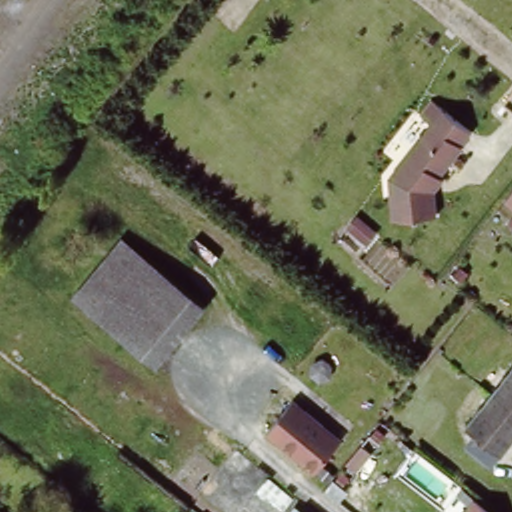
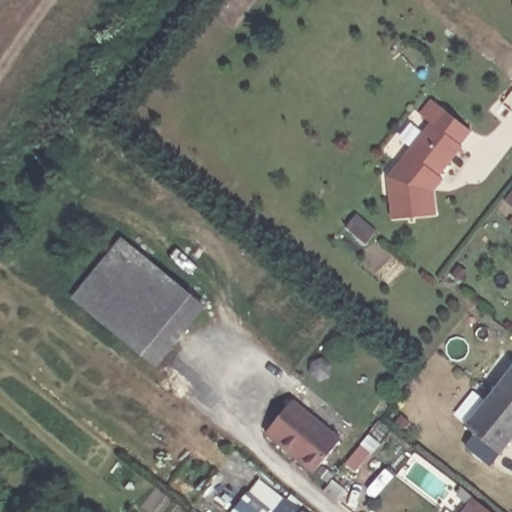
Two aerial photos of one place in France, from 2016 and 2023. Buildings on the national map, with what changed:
unchanged [(433,188),(434,214),(391,216),(389,174),(432,120),(427,116),(438,101),(472,128),(461,141),(463,143),(439,173),(443,176),(433,188)]
unchanged [(512,191),(512,205),(506,200),(512,191)]
unchanged [(122,241),(206,309),(158,367),(74,300),(122,241)]
unchanged [(470,440),(480,427),(470,420),(512,366),(512,439),(496,460),(470,440)]
unchanged [(294,396),(342,437),(313,471),(267,432),(294,396)]
unchanged [(490,512),(463,512),(474,499),(490,512)]

